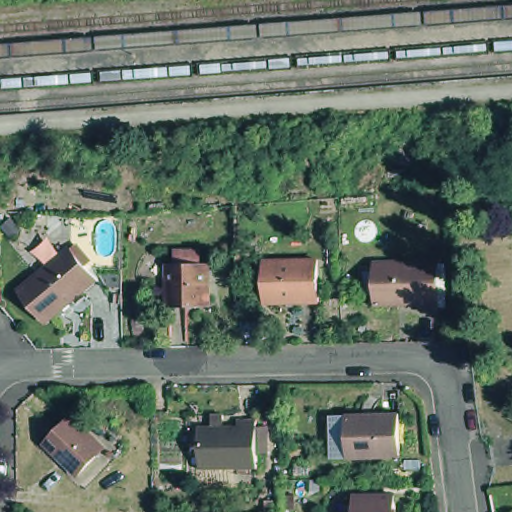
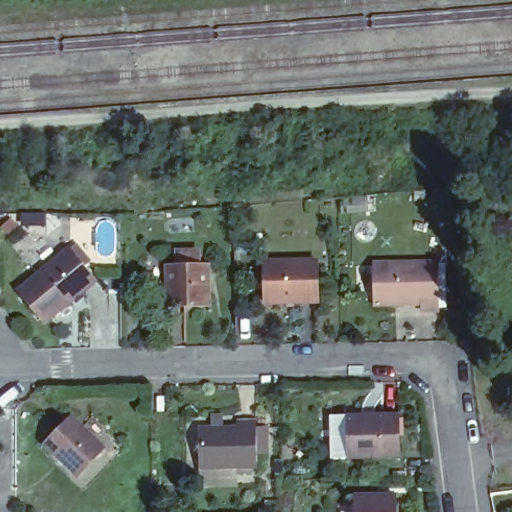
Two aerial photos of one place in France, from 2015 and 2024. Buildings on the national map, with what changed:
unchanged [(78,246),(103,277),(53,319),(27,287),(78,246)]
unchanged [(212,255),(213,297),(171,298),(171,256),(212,255)]
unchanged [(439,256),(441,304),(425,305),(425,297),(379,297),(378,256),(439,256)]
unchanged [(321,260),(321,300),(268,300),(268,260),(321,260)]
unchanged [(106,438),(79,467),(46,435),(73,407),(106,438)]
unchanged [(417,410),(418,453),(364,455),(348,455),(347,412),(364,411),(417,410)]
unchanged [(259,460),(259,476),(202,477),(201,434),(188,435),(188,423),(239,422),(239,427),(258,427),(259,435),(269,434),(269,450),(270,460),(259,460)]
unchanged [(399,512),(358,512),(358,492),(398,490),(399,512)]

